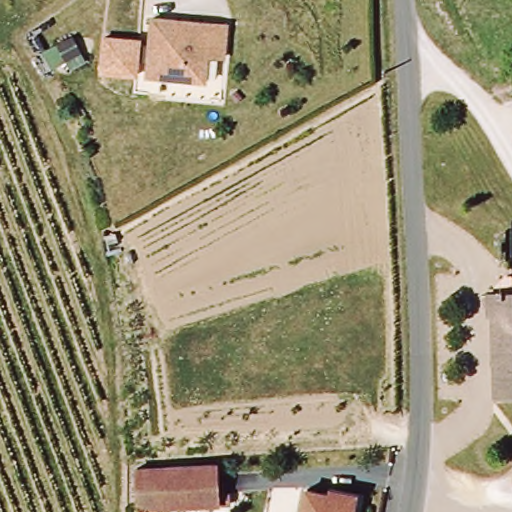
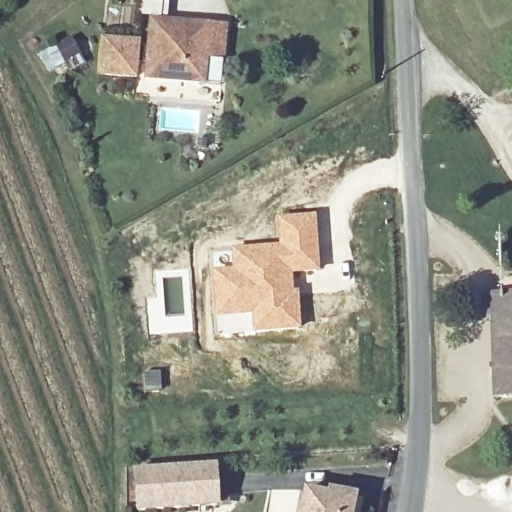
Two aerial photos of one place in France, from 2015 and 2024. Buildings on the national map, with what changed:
unchanged [(223,23),(219,54),(203,52),(199,79),(140,72),(148,13),(223,23)]
unchanged [(140,42),(136,81),(98,76),(101,38),(140,42)]
new [(232,267),(231,246),(278,244),(275,217),(315,214),(320,272),(293,275),(294,290),(298,290),(302,329),(218,336),(211,268),(232,267)]
unchanged [(501,315),(487,315),(487,293),(512,294),(512,315),(501,315)]
unchanged [(494,399),(492,372),(503,372),(501,315),(512,315),(512,398),(494,399)]
unchanged [(214,468),(214,508),(144,511),(143,469),(214,468)]
unchanged [(349,512),(305,512),(309,495),(351,502),(349,512)]

